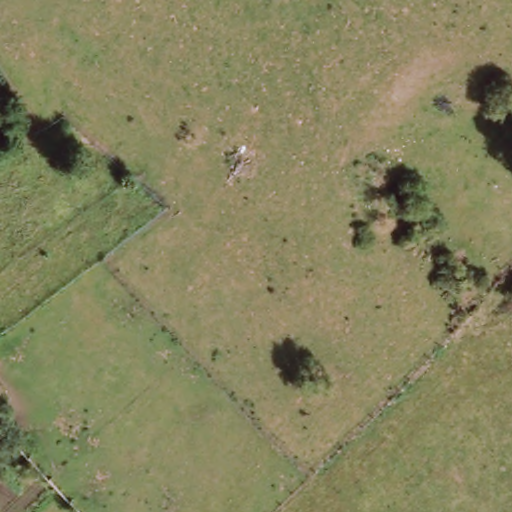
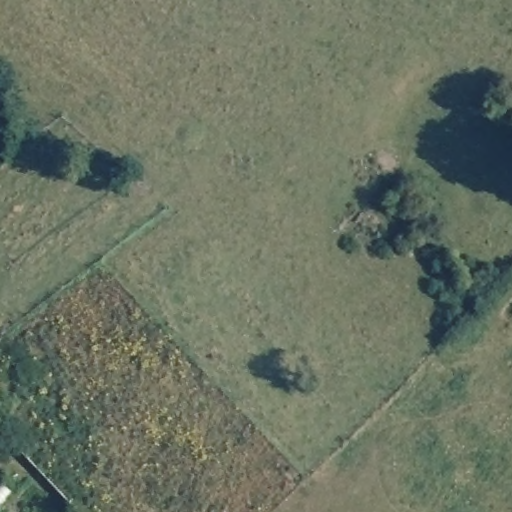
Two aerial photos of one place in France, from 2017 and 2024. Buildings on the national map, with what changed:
unchanged [(499,182),(507,188),(501,196),(493,190),(499,182)]

